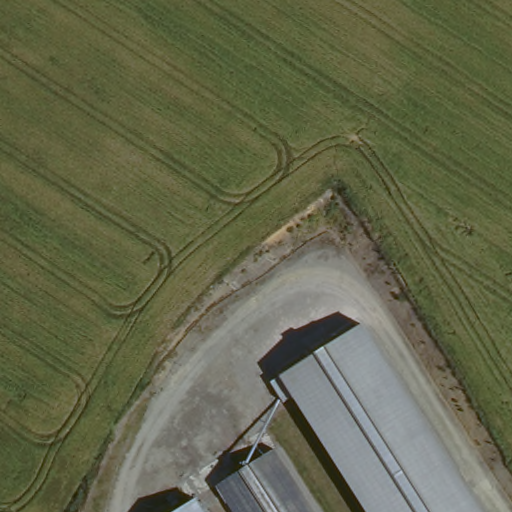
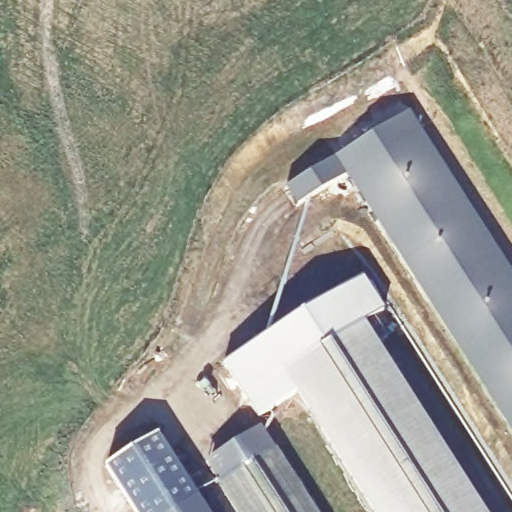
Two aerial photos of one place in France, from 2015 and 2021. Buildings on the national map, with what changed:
new [(512,267),(512,434),(346,172),(297,204),(286,186),(410,107),(512,267)]
unchanged [(284,401),(272,382),(283,375),(366,323),(486,512),(370,512),(295,395),(284,401)]
unchanged [(229,499),(209,511),(210,512),(177,512),(194,502),(183,482),(216,463),(265,435),(270,432),(284,452),(282,452),(278,455),(313,512),(243,512),(234,497),(229,499)]

